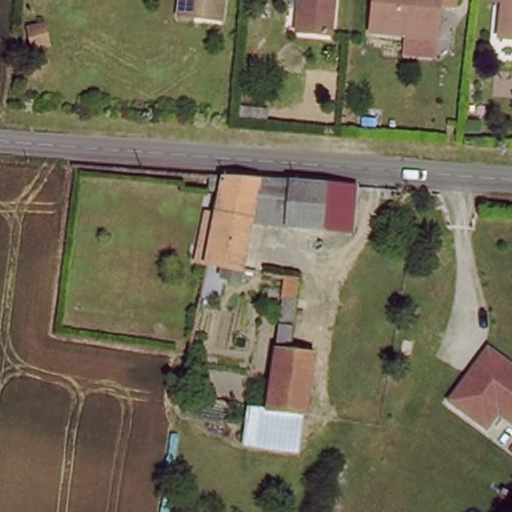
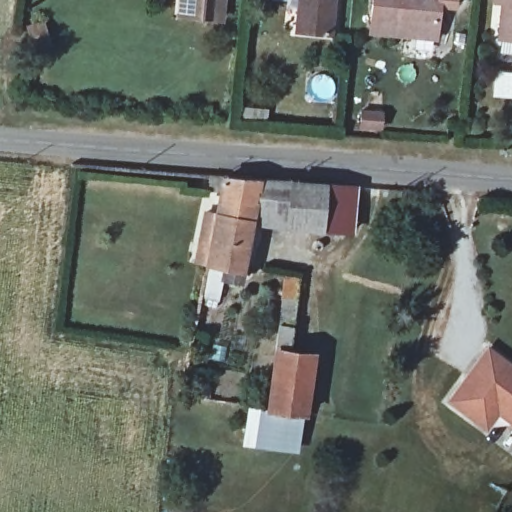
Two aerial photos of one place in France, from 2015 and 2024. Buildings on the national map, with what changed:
unchanged [(228,0),(226,17),(194,14),(181,12),(182,0),(228,0)]
unchanged [(300,34),(302,0),(337,0),(337,2),(335,37),(300,34)]
unchanged [(437,38),(370,29),(373,0),(442,0),(442,4),(437,38)]
unchanged [(442,0),(459,0),(459,2),(442,0)]
unchanged [(512,0),(512,38),(507,37),(512,0)]
unchanged [(218,286),(221,268),(204,265),(209,241),(221,184),(324,191),(319,237),(247,228),(243,249),(239,271),(235,291),(218,286)]
unchanged [(354,192),(348,241),(319,237),(324,191),(354,192)]
unchanged [(301,417),(264,413),(272,349),(282,278),(294,280),(285,351),(310,355),(301,417)]
unchanged [(450,412),(479,356),(512,372),(512,421),(499,415),(490,432),(478,426),(450,412)]
unchanged [(293,460),(241,452),(247,411),(264,413),(301,417),(293,460)]

